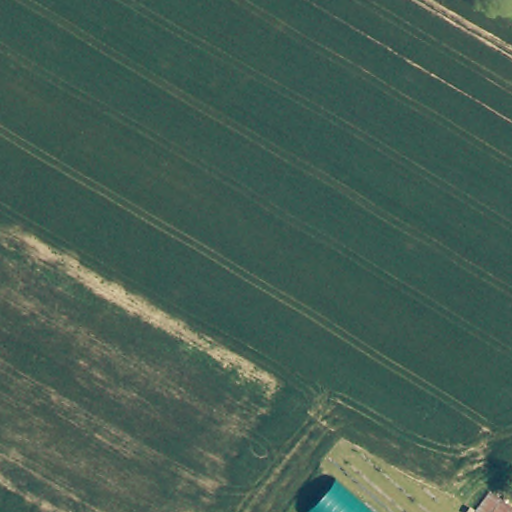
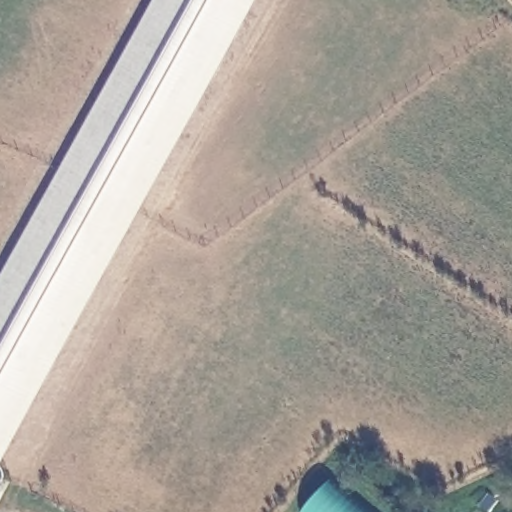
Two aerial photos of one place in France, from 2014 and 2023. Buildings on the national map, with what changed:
new [(0,279),(153,0),(256,0),(0,469),(0,279)]
unchanged [(334,479),(372,512),(302,512),(334,479)]
unchanged [(482,497),(488,491),(510,511),(509,512),(469,512),(482,497)]

